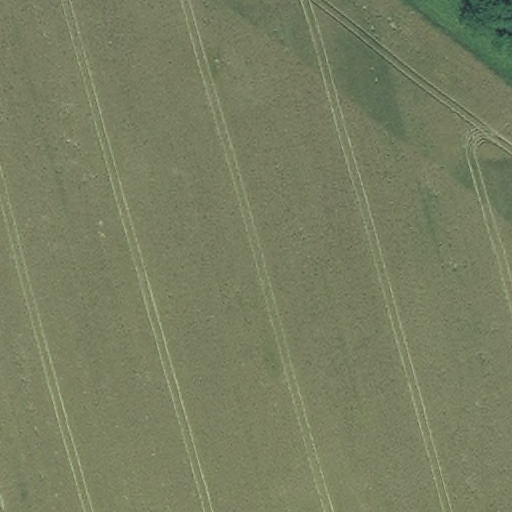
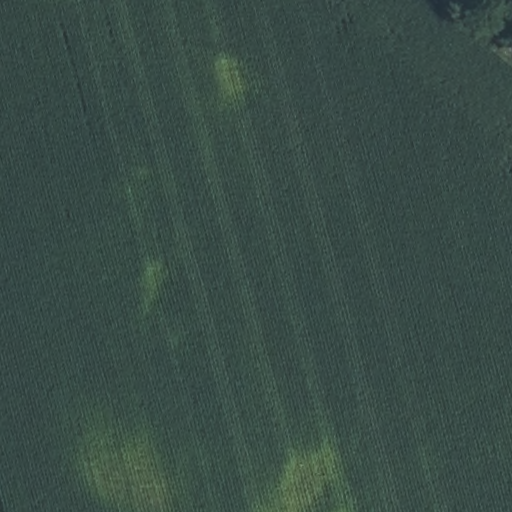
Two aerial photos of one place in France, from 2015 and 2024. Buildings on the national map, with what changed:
[]

